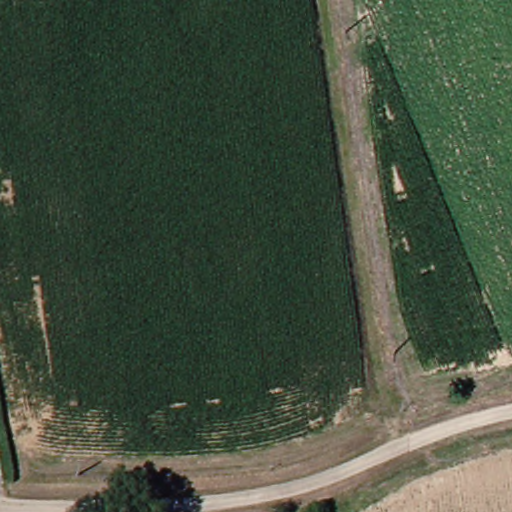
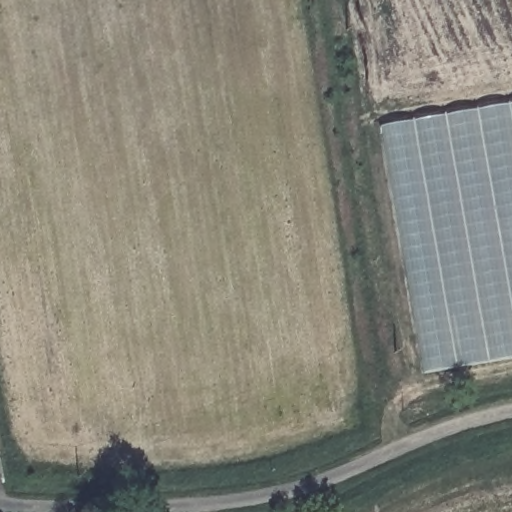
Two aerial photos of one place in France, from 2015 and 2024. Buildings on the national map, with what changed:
new [(512,105),(512,358),(421,373),(379,127),(512,105)]

